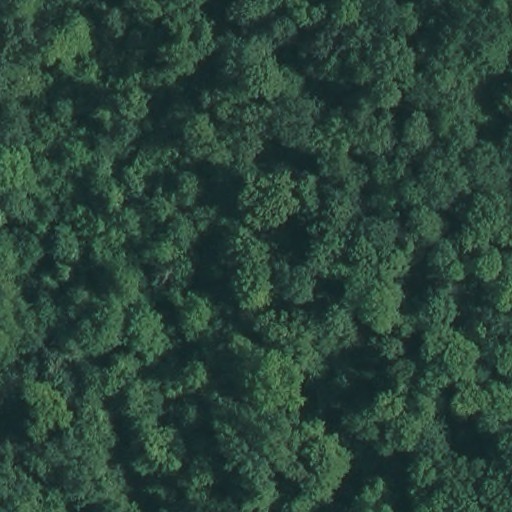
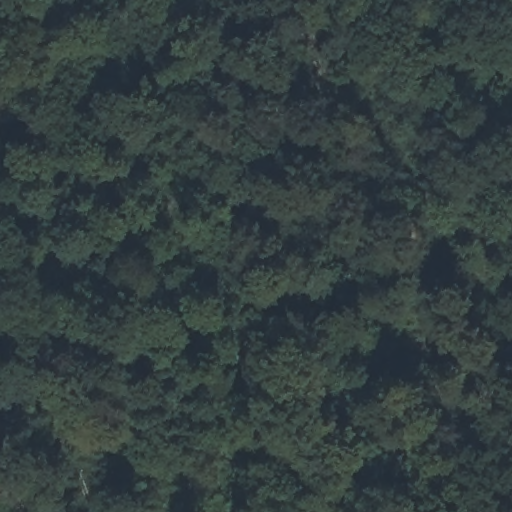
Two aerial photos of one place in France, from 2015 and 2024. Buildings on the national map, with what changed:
unchanged [(463,129),(484,101),(512,118),(512,158),(463,129)]

